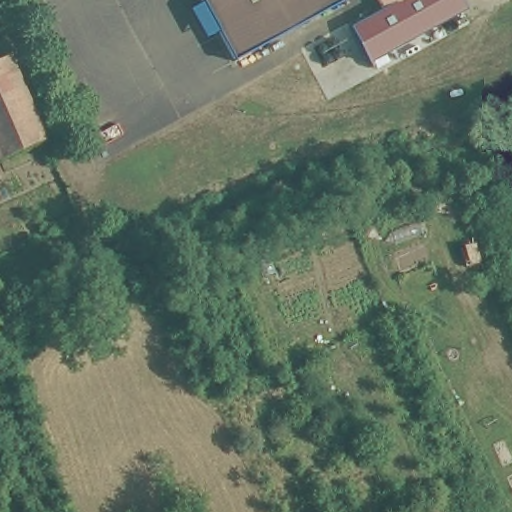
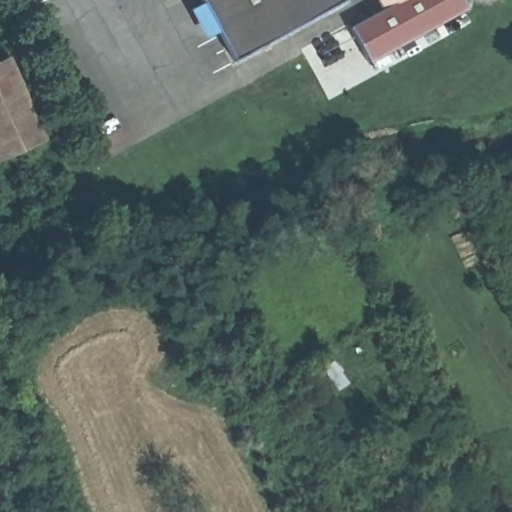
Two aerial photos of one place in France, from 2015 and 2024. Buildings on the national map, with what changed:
unchanged [(347,0),(348,1),(239,61),(205,0),(347,0)]
unchanged [(463,0),(469,10),(445,23),(372,63),(371,61),(352,28),(360,24),(387,10),(404,0),(463,0)]
unchanged [(381,0),(404,0),(387,10),(381,0)]
unchanged [(40,141),(0,160),(0,60),(4,59),(40,141)]

